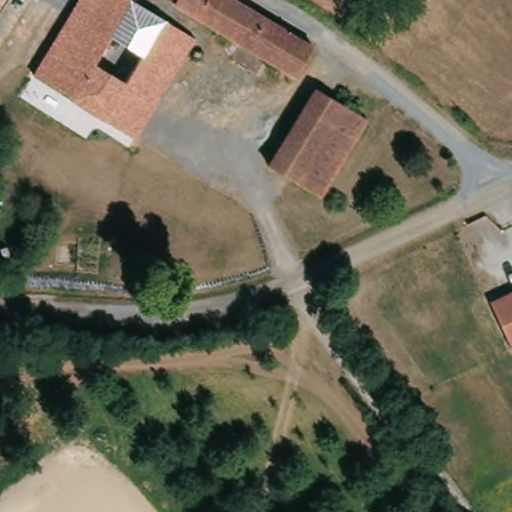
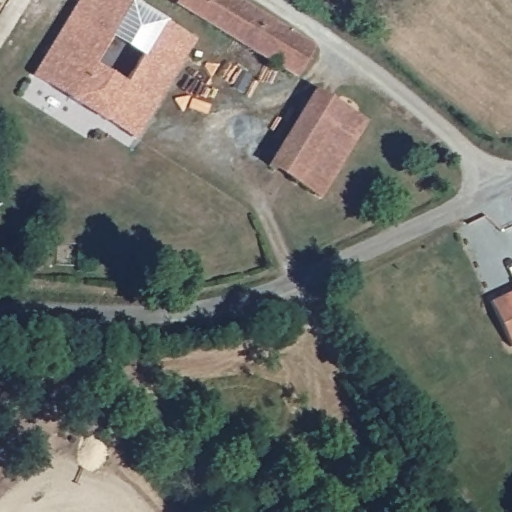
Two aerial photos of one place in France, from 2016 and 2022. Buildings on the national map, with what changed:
unchanged [(0,58),(0,0),(35,0),(0,58)]
unchanged [(34,76),(80,0),(132,0),(195,39),(134,138),(60,92),(34,76)]
unchanged [(313,47),(295,77),(205,23),(175,4),(175,3),(170,0),(235,0),(313,47)]
unchanged [(321,197),(269,166),(316,89),(368,121),(321,197)]
unchanged [(512,294),(512,350),(490,305),(512,294)]

